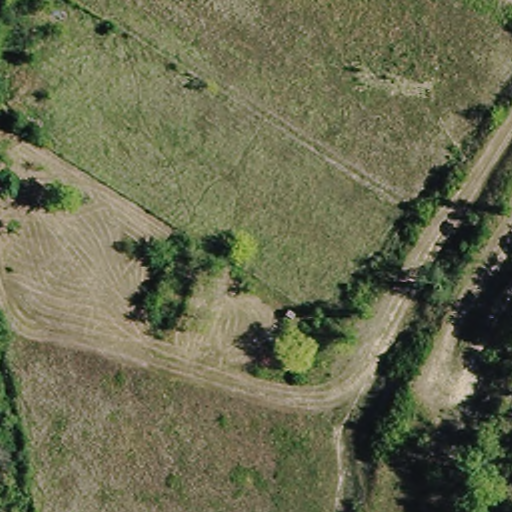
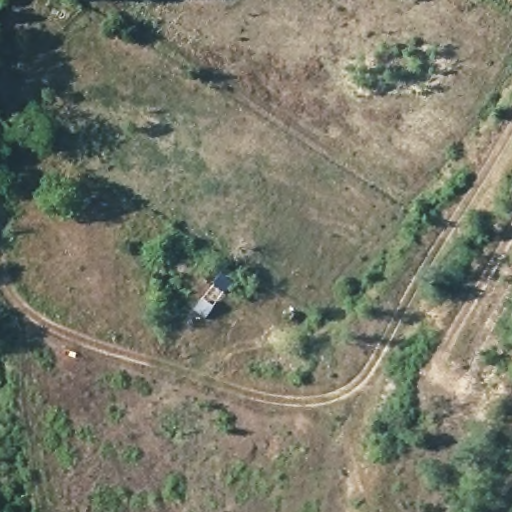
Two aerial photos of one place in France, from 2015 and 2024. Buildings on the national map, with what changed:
[]

